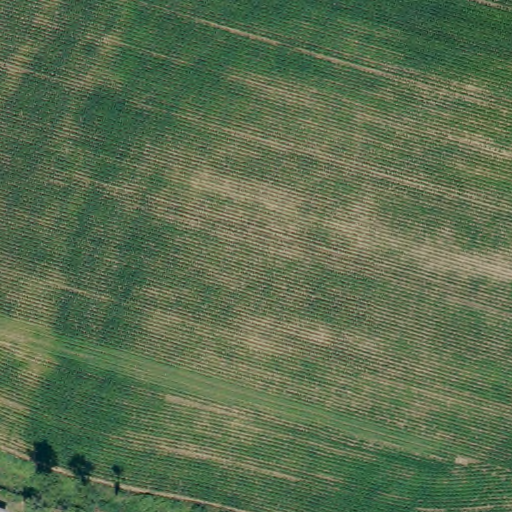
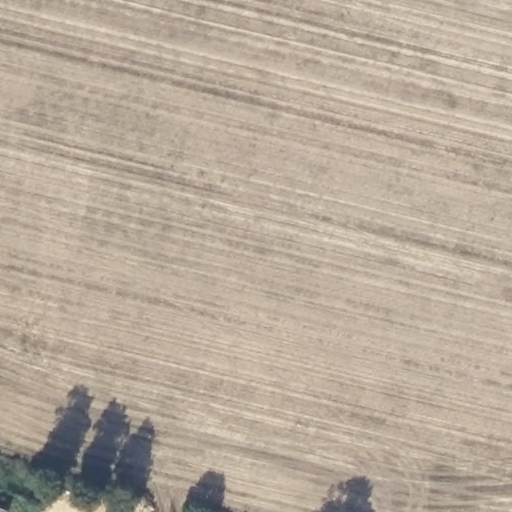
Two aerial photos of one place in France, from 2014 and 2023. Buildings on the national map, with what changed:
unchanged [(0,507),(8,510),(7,512),(0,512),(0,507)]

